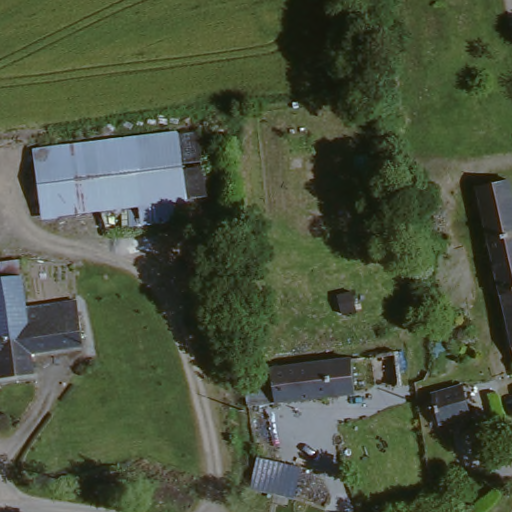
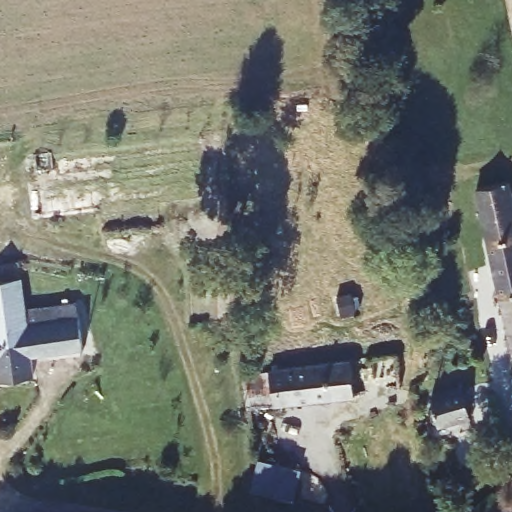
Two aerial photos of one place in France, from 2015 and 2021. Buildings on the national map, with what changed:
demolished [(205,125),(213,197),(180,201),(182,221),(68,235),(64,219),(47,220),(38,145),(205,125)]
unchanged [(479,184),(511,177),(512,181),(512,327),(479,184)]
unchanged [(33,305),(81,297),(89,342),(36,351),(39,367),(6,372),(0,337),(0,275),(9,273),(7,260),(25,257),(33,305)]
unchanged [(254,407),(252,369),(356,357),(361,391),(254,407)]
unchanged [(443,421),(437,390),(468,383),(476,413),(443,421)]
unchanged [(259,462),(299,472),(292,504),(251,494),(259,462)]

